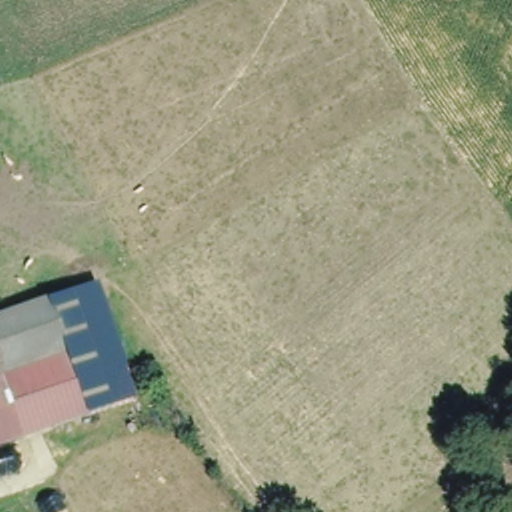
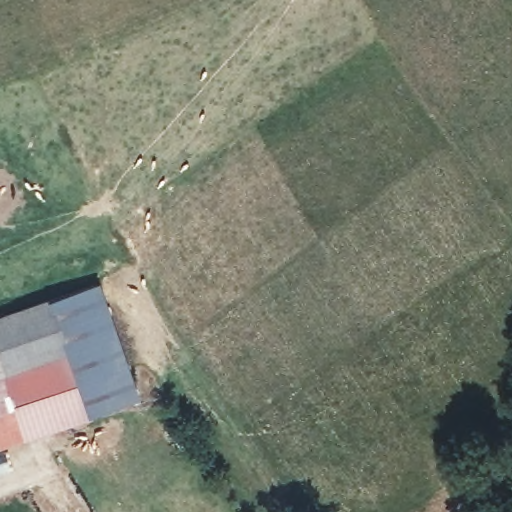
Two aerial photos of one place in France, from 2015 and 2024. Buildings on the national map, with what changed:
unchanged [(51,287),(97,272),(136,398),(92,413),(51,287)]
unchanged [(92,413),(0,442),(0,305),(51,287),(92,413)]

